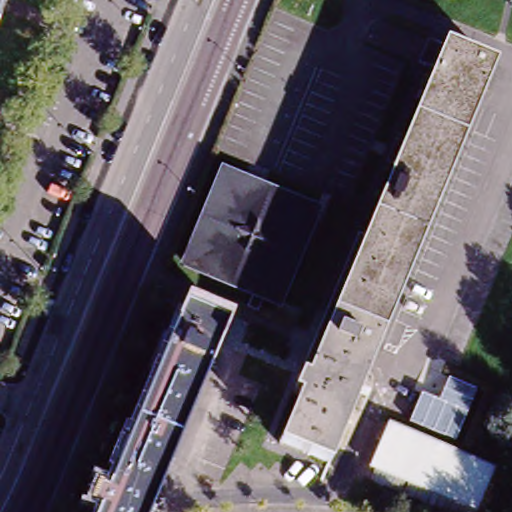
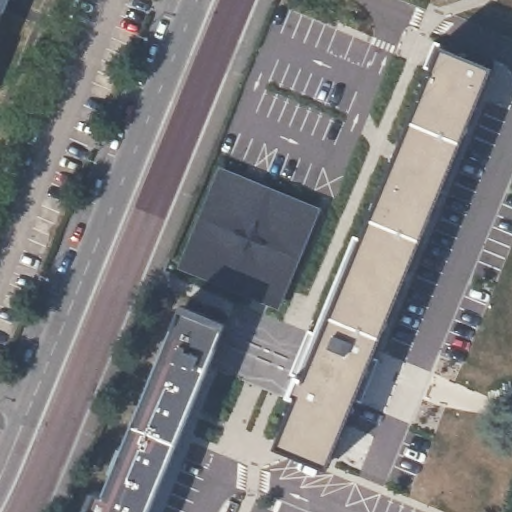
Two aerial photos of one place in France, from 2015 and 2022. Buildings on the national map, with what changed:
unchanged [(0,5),(0,0),(2,0),(0,5)]
unchanged [(307,372),(437,53),(489,73),(327,471),(275,449),(302,384),(307,372)]
unchanged [(247,300),(180,271),(218,180),(310,217),(272,310),(262,306),(247,300)]
unchanged [(222,329),(219,336),(213,348),(147,512),(96,512),(178,312),(222,329)]
demolished [(415,387),(445,399),(452,381),(471,390),(452,438),(403,419),(415,387)]
demolished [(479,500),(375,458),(392,414),(403,419),(452,438),(497,457),(479,500)]

